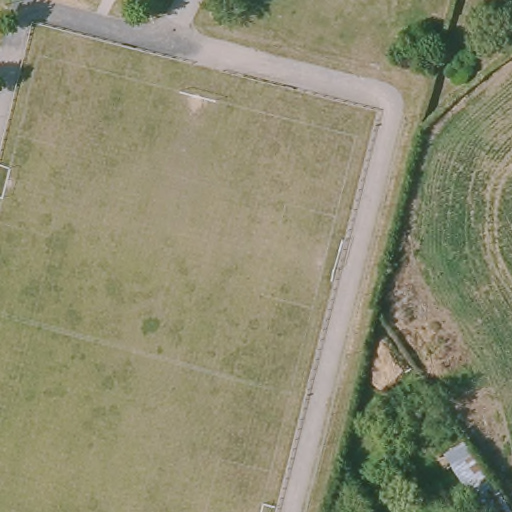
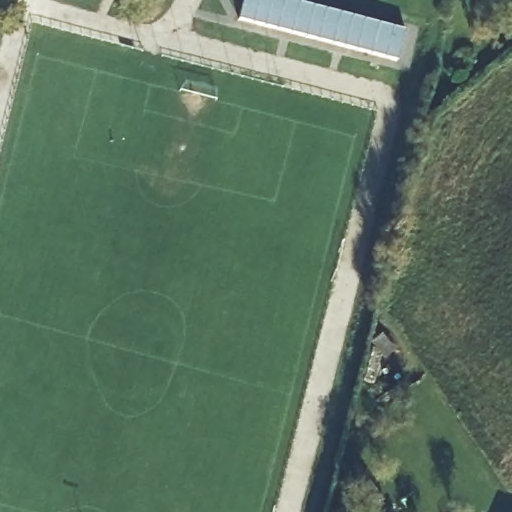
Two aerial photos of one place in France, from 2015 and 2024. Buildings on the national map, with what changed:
new [(243,0),(291,0),(405,29),(397,59),(238,19),(243,0)]

